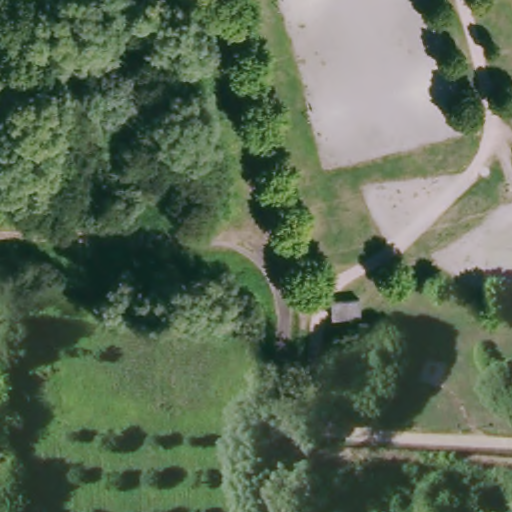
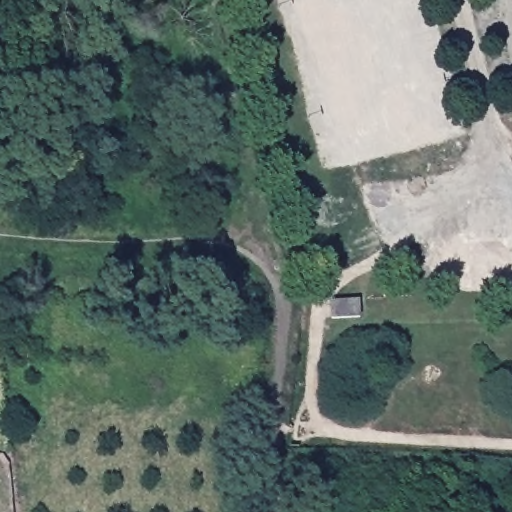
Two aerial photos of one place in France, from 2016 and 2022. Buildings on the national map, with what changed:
unchanged [(362,317),(334,320),(333,304),(361,302),(362,317)]

